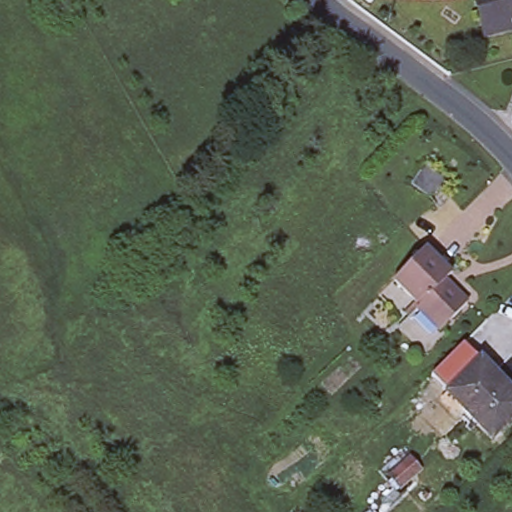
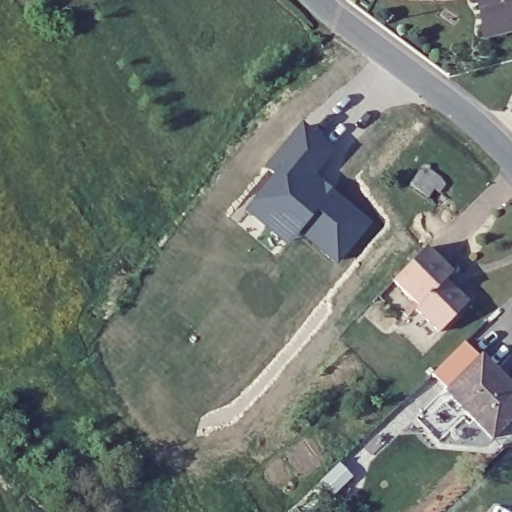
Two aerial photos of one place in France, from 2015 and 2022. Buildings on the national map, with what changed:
unchanged [(482,34),(473,0),(512,0),(512,27),(482,34)]
new [(334,147),(320,178),(372,222),(340,264),(242,197),(295,123),(334,147)]
unchanged [(432,164),(432,170),(444,177),(447,185),(442,193),(436,190),(430,198),(412,179),(425,164),(432,164)]
unchanged [(442,279),(417,305),(416,304),(391,280),(420,250),(422,247),(449,271),(443,277),(442,279)]
unchanged [(466,301),(465,302),(436,331),(412,308),(416,304),(417,305),(442,279),(457,293),(466,301)]
unchanged [(432,380),(455,358),(470,373),(477,367),(505,395),(512,403),(512,424),(488,448),(442,401),(447,396),(432,380)]

